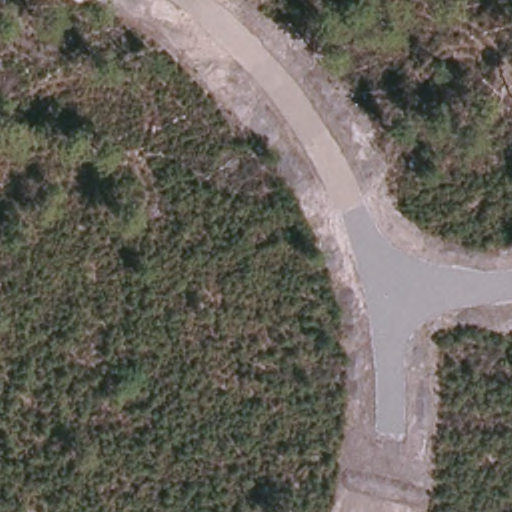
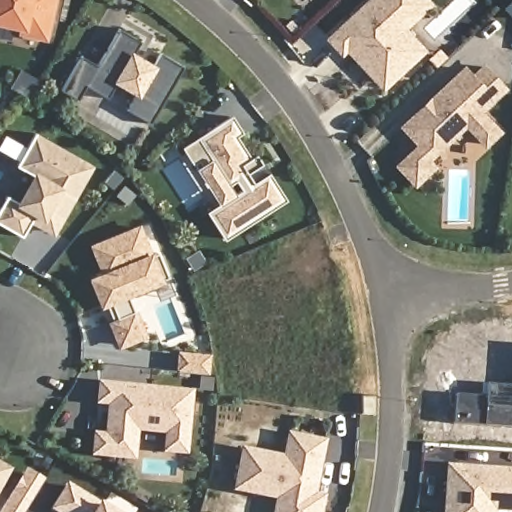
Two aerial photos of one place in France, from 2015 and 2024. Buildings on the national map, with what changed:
new [(47,41),(17,35),(20,29),(0,24),(0,0),(57,0),(47,41)]
new [(427,50),(382,92),(346,52),(341,56),(325,39),(368,0),(430,0),(434,5),(407,29),(427,50)]
new [(62,90),(82,55),(100,65),(119,30),(139,41),(133,52),(154,65),(160,54),(183,67),(150,123),(127,110),(135,96),(116,85),(107,99),(87,87),(79,100),(62,90)]
new [(395,164),(415,144),(398,127),(466,66),(472,73),(483,63),(508,89),(484,112),(503,131),(486,148),(467,128),(432,160),(437,166),(415,187),(395,164)]
new [(196,169),(182,146),(232,115),(243,132),(237,136),(251,158),(257,154),(287,200),(225,240),(208,211),(219,205),(196,169)]
new [(53,228),(32,216),(22,232),(0,220),(0,204),(7,191),(20,199),(35,172),(17,161),(34,131),(90,163),(53,228)]
new [(107,321),(112,320),(106,306),(101,309),(89,278),(101,273),(90,245),(140,225),(152,252),(164,282),(129,298),(134,311),(136,310),(147,336),(119,349),(107,321)]
new [(165,446),(167,428),(136,425),(133,454),(94,450),(96,431),(107,432),(109,410),(110,399),(116,400),(99,398),(100,380),(191,389),(185,448),(165,446)]
new [(483,396),(484,383),(512,385),(512,428),(452,424),(454,393),(483,396)]
new [(326,494),(322,512),(272,512),(275,500),(232,492),(241,447),(283,454),(287,432),(327,440),(317,492),(326,494)]
new [(493,512),(446,512),(447,485),(449,465),(512,469),(512,512),(493,512),(493,506),(493,512)]
new [(7,471),(0,484),(0,467),(7,471)]
new [(46,479),(25,512),(0,512),(0,509),(26,467),(46,479)]
new [(66,482),(99,502),(115,512),(53,512),(50,510),(66,482)]

